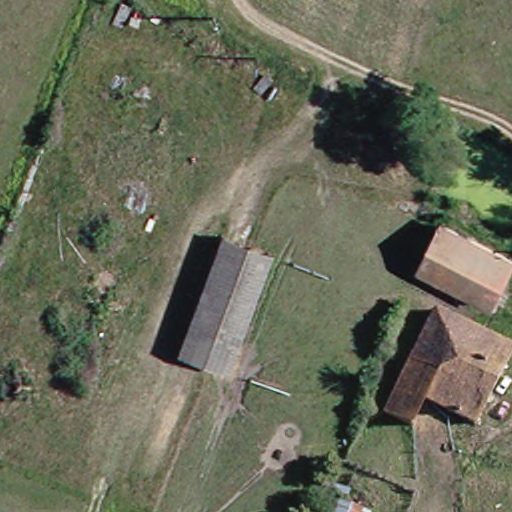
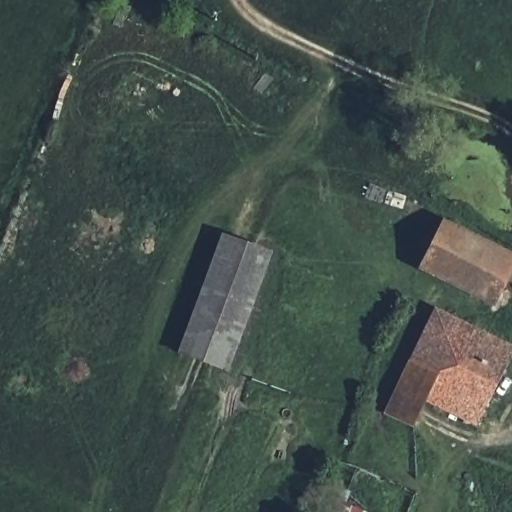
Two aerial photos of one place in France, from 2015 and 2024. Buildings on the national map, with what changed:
unchanged [(485,305),(414,272),(436,227),(506,262),(485,305)]
unchanged [(262,259),(220,373),(169,354),(209,240),(262,259)]
unchanged [(417,400),(403,425),(377,413),(428,315),(512,354),(512,371),(504,387),(437,356),(417,400)]
unchanged [(483,430),(417,400),(437,356),(504,387),(483,430)]
unchanged [(314,497),(314,486),(343,492),(340,507),(350,512),(316,512),(320,499),(314,497)]

